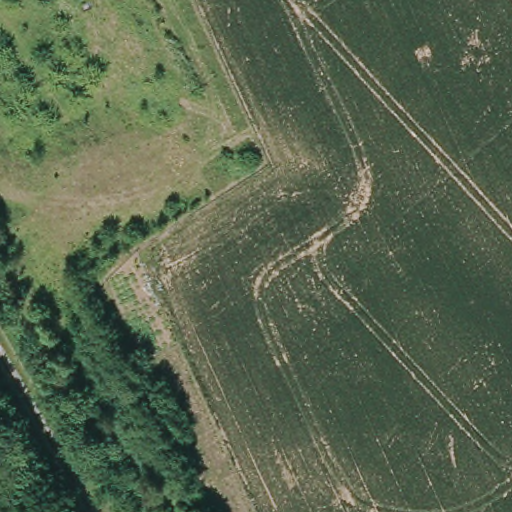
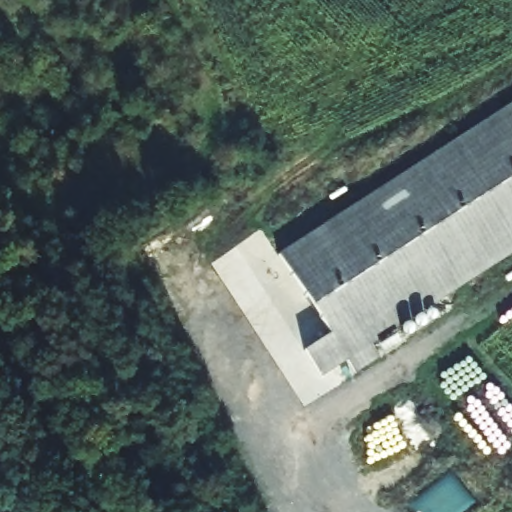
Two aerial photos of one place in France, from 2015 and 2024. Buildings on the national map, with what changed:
new [(283,260),(512,113),(512,282),(360,383),(283,260)]

